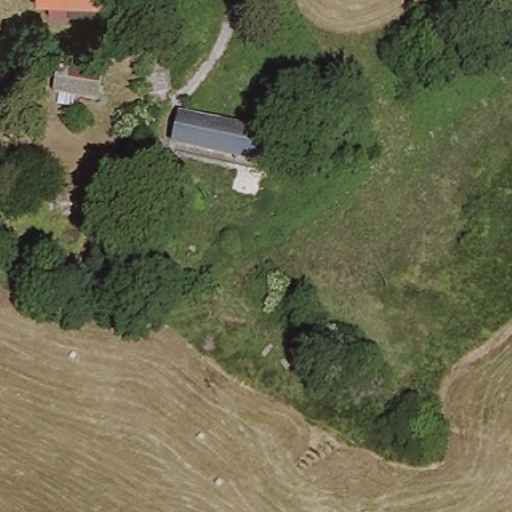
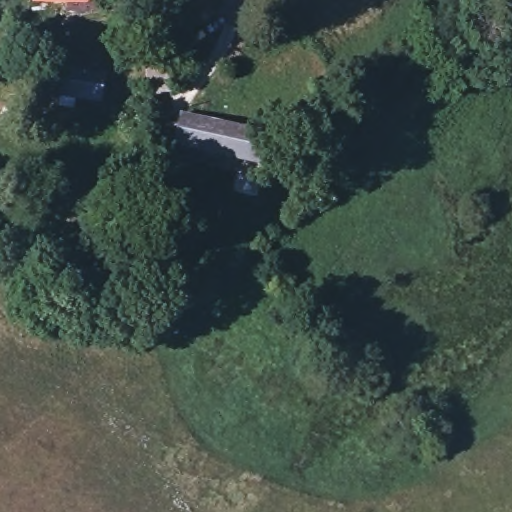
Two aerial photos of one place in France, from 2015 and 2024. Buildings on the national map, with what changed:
unchanged [(50,20),(48,7),(27,7),(27,0),(107,0),(107,19),(50,20)]
unchanged [(161,84),(140,85),(135,33),(157,31),(161,84)]
unchanged [(89,91),(45,84),(50,57),(93,65),(89,91)]
unchanged [(257,161),(171,140),(178,111),(264,130),(257,161)]
unchanged [(149,157),(145,161),(145,171),(129,172),(130,145),(149,145),(149,157)]

